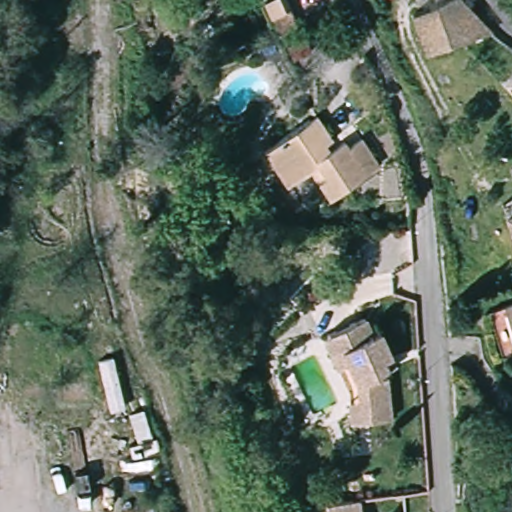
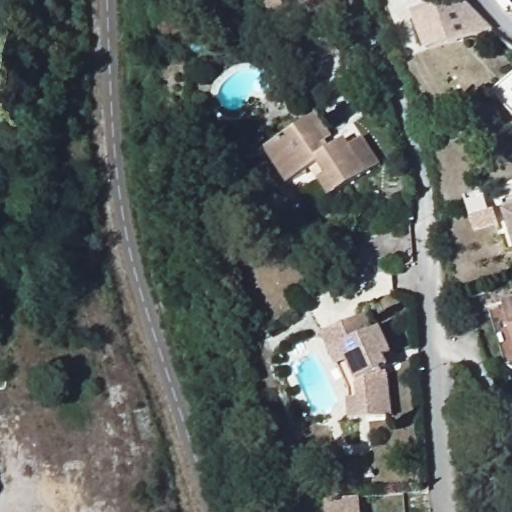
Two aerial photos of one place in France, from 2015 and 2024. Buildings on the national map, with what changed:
unchanged [(421,17),(460,0),(463,0),(471,11),(495,33),(431,55),(421,17)]
unchanged [(342,197),(324,169),(293,188),(268,150),(300,129),(312,147),(320,140),(331,157),(335,155),(351,191),(342,197)]
unchanged [(351,191),(335,155),(349,146),(355,154),(369,144),(385,169),(351,191)]
unchanged [(512,210),(512,219),(510,211),(512,210)]
unchanged [(512,303),(512,323),(507,305),(512,303)]
unchanged [(362,413),(359,391),(364,389),(359,357),(337,331),(370,307),(379,323),(385,322),(400,350),(389,361),(394,368),(400,407),(362,413)]
unchanged [(319,496),(357,491),(359,512),(322,512),(319,496)]

